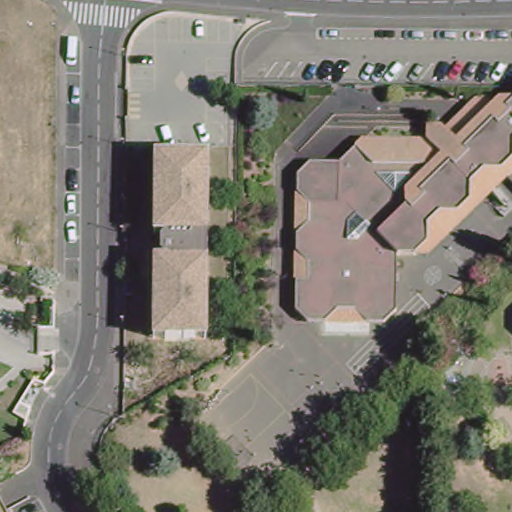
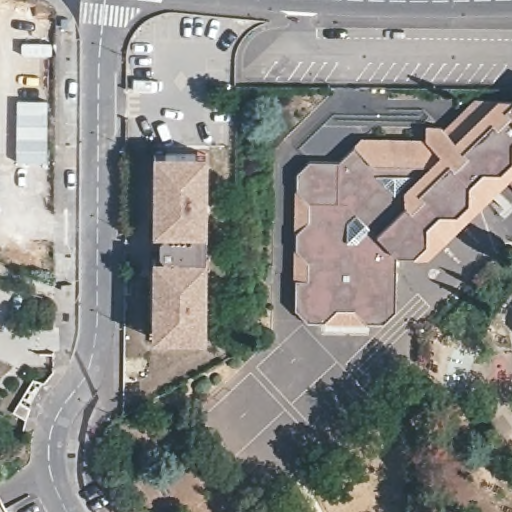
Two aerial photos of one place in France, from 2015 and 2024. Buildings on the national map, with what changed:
new [(16,101),(48,102),(48,164),(16,163),(16,101)]
unchanged [(495,171),(495,180),(485,189),(475,189),(474,199),(464,210),(454,210),(452,221),(442,231),(433,231),(432,241),(415,257),(400,257),(398,312),(385,323),(370,323),(364,317),(357,323),(343,323),(336,316),(329,323),(307,323),(297,312),(298,281),(298,252),(298,234),(306,228),(299,218),(299,209),(307,201),(299,194),(299,177),(311,165),(341,165),(365,146),(429,145),(429,131),(444,130),(445,129),(460,115),(475,102),(512,102),(512,162),(503,171),(495,171)]
unchanged [(200,327),(188,338),(158,337),(147,326),(148,270),(159,259),(159,258),(158,256),(156,254),(156,237),(160,233),(149,224),(150,164),(161,153),(190,154),(201,166),(201,222),(200,271),(200,327)]
unchanged [(512,176),(512,180),(510,178),(512,176)]

